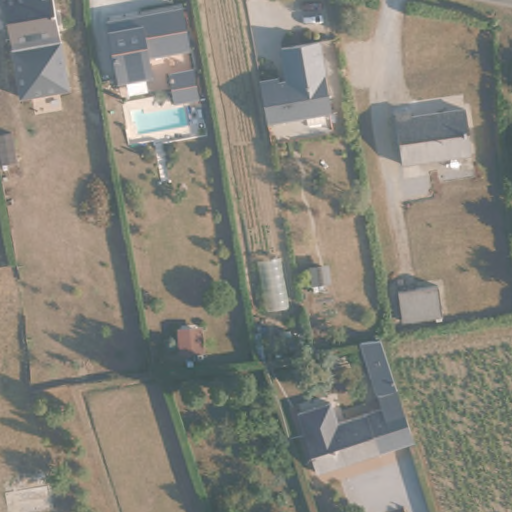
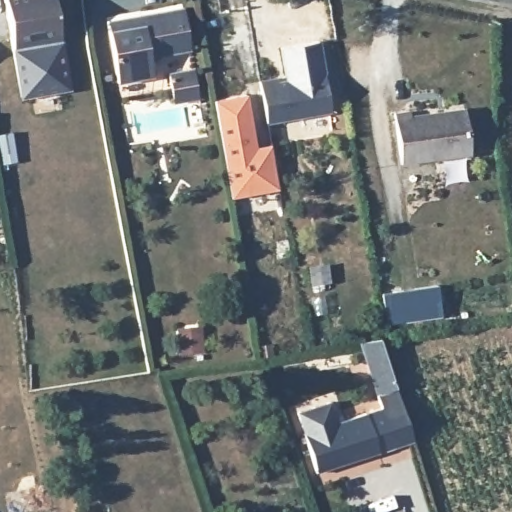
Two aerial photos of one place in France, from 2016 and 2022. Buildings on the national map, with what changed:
unchanged [(53,39),(5,46),(0,7),(0,3),(23,0),(47,0),(53,39)]
unchanged [(189,48),(149,54),(152,75),(120,79),(111,31),(109,17),(138,14),(182,7),(189,48)]
unchanged [(53,39),(62,93),(17,99),(5,46),(53,39)]
unchanged [(267,131),(260,90),(279,87),(279,91),(292,90),(292,84),(286,84),(281,55),(319,49),(330,120),(297,125),(275,130),(267,131)]
unchanged [(193,69),(198,98),(175,101),(169,71),(193,69)]
new [(213,100),(245,95),(255,147),(270,145),(278,190),(230,199),(213,100)]
unchanged [(463,110),(469,156),(401,164),(396,114),(413,112),(413,115),(463,110)]
unchanged [(434,288),(438,318),(399,323),(395,293),(434,288)]
unchanged [(395,388),(374,394),(358,341),(378,338),(395,388)]
unchanged [(304,430),(297,409),(329,400),(336,420),(378,408),(374,394),(395,388),(397,395),(413,442),(315,469),(304,430)]
demolished [(51,509),(34,512),(7,512),(3,492),(46,485),(51,509)]

